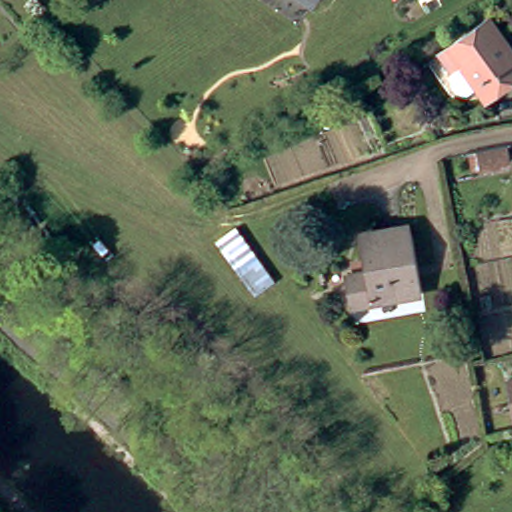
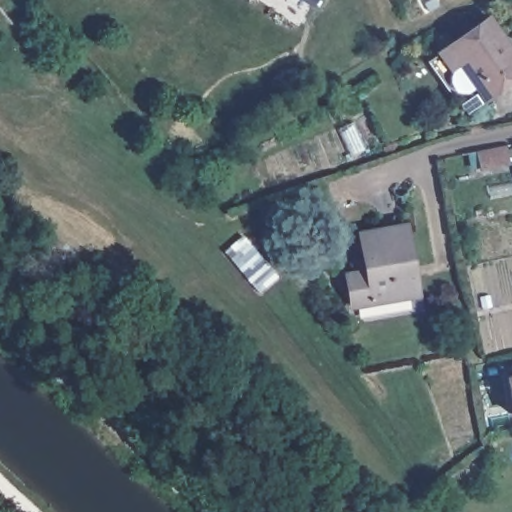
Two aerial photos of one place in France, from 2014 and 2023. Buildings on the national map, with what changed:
unchanged [(294,0),(308,0),(304,6),(294,0)]
unchanged [(433,56),(445,48),(454,42),(492,16),(504,34),(512,47),(512,79),(489,94),(481,81),(473,87),(461,84),(453,76),(449,79),(433,56)]
unchanged [(499,148),(502,164),(476,169),(472,154),(499,148)]
unchanged [(274,276),(251,296),(208,240),(231,224),(274,276)]
unchanged [(369,273),(361,234),(405,226),(419,292),(354,304),(349,277),(369,273)]
unchanged [(508,373),(512,372),(512,394),(508,373)]

